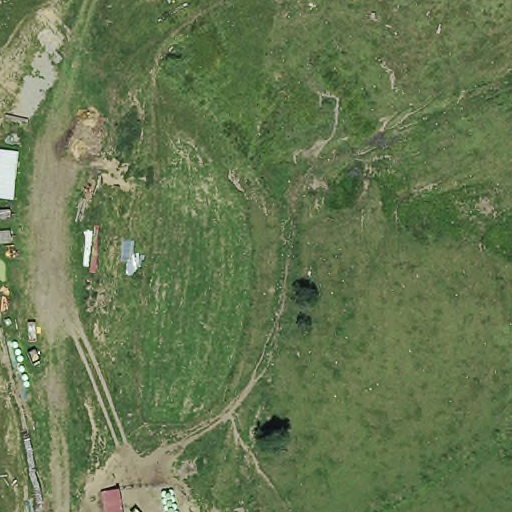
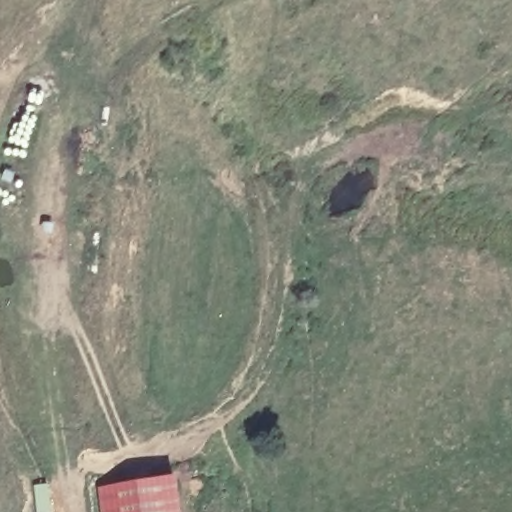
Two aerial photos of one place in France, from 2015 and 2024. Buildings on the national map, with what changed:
new [(172,479),(176,512),(97,512),(95,489),(172,479)]
unchanged [(47,484),(52,512),(34,512),(30,487),(47,484)]
demolished [(117,489),(121,512),(103,512),(100,492),(117,489)]

